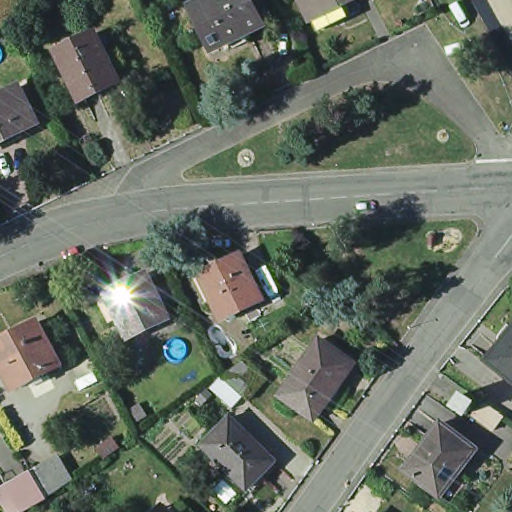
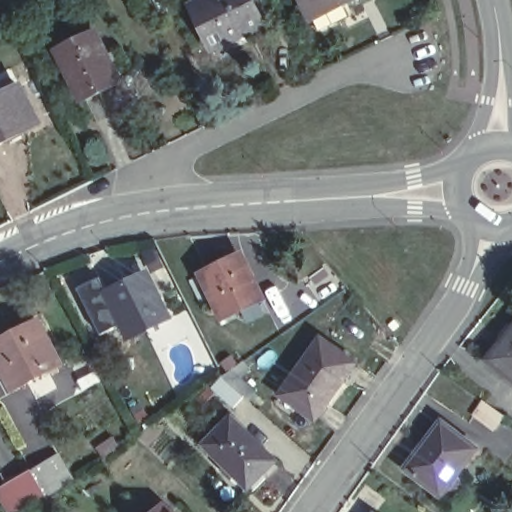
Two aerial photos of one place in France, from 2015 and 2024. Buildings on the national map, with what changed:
unchanged [(169,24),(215,0),(224,0),(244,40),(190,67),(169,24)]
unchanged [(305,15),(297,0),(336,0),(341,9),(310,26),(305,15)]
unchanged [(50,52),(90,32),(112,84),(74,103),(50,52)]
unchanged [(30,125),(0,140),(0,95),(15,88),(30,125)]
unchanged [(190,279),(207,271),(239,255),(250,274),(254,272),(266,296),(225,317),(217,301),(205,306),(190,279)]
unchanged [(120,337),(112,322),(117,320),(101,289),(132,274),(144,294),(149,292),(162,314),(120,337)]
unchanged [(476,354),(512,309),(512,378),(509,381),(476,354)]
unchanged [(0,365),(0,335),(34,317),(58,362),(12,387),(0,365)]
unchanged [(279,398),(318,345),(353,369),(312,424),(279,398)]
unchanged [(229,404),(207,385),(219,377),(239,363),(243,368),(235,374),(250,390),(243,399),(239,395),(229,404)]
unchanged [(512,378),(512,384),(509,381),(512,378)]
unchanged [(485,430),(467,415),(452,403),(464,388),(477,400),(475,402),(496,417),(485,430)]
unchanged [(245,485),(200,437),(227,411),(272,459),(245,485)]
unchanged [(402,468),(437,421),(469,448),(435,491),(402,468)]
unchanged [(25,480),(23,475),(47,461),(64,488),(40,505),(27,512),(14,512),(5,491),(25,480)]
unchanged [(181,512),(173,512),(177,508),(181,512)]

